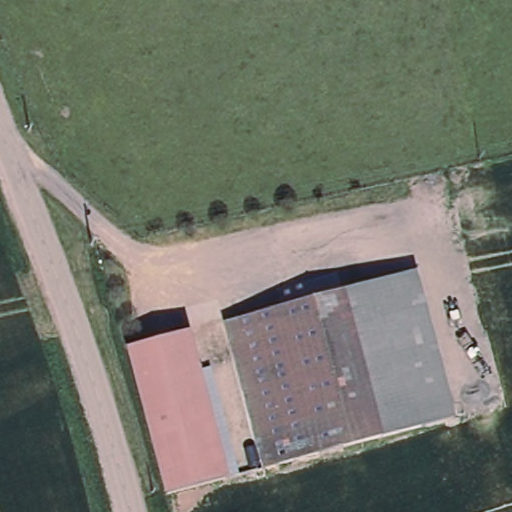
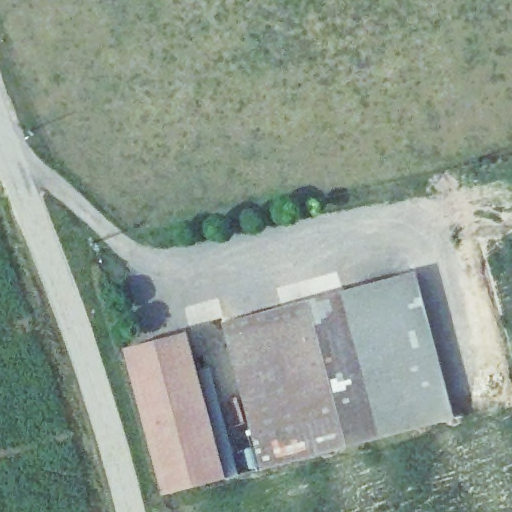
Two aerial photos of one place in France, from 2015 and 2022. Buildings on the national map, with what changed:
unchanged [(409,279),(445,421),(392,435),(355,293),(409,279)]
unchanged [(274,466),(237,323),(355,293),(392,435),(274,466)]
unchanged [(129,354),(190,338),(227,481),(167,498),(134,375),(129,354)]

